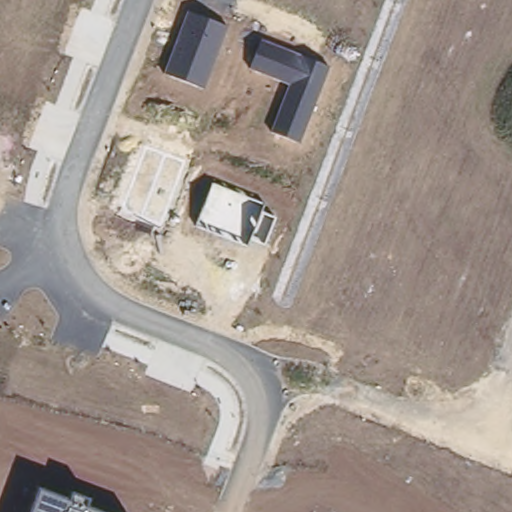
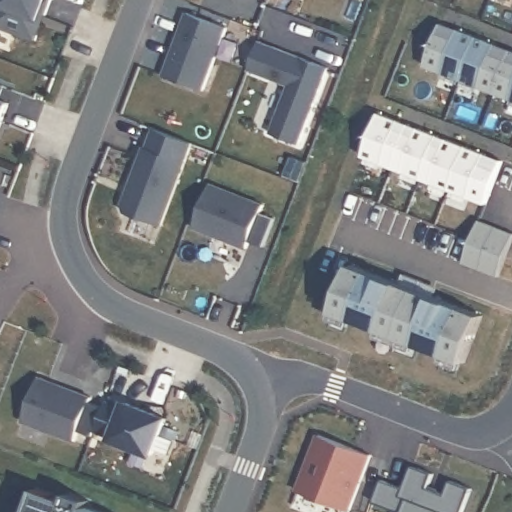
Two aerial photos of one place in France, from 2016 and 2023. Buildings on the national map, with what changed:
new [(0,26),(0,7),(3,0),(51,0),(36,39),(0,26)]
unchanged [(187,11),(229,26),(205,90),(164,73),(187,11)]
new [(512,52),(512,100),(427,67),(443,25),(512,52)]
unchanged [(290,85),(249,70),(261,39),(332,66),(301,144),(272,131),(290,85)]
new [(4,84),(0,95),(0,83),(4,84)]
new [(9,103),(0,126),(0,100),(9,103)]
new [(380,114),(506,165),(490,207),(364,157),(380,114)]
unchanged [(123,209),(147,146),(187,161),(166,225),(123,209)]
unchanged [(250,239),(247,247),(192,227),(210,182),(266,204),(263,213),(276,219),(266,245),(250,239)]
new [(512,250),(501,280),(460,264),(477,216),(512,231),(512,250)]
new [(351,263),(489,319),(469,371),(328,317),(351,263)]
new [(94,435),(80,430),(76,440),(24,420),(41,377),(92,397),(91,402),(105,407),(94,435)]
new [(107,402),(124,409),(127,403),(167,418),(153,455),(112,439),(114,436),(96,429),(107,402)]
new [(319,435),(371,455),(349,510),(297,490),(319,435)]
new [(385,482),(406,490),(415,468),(432,474),(427,490),(447,498),(452,484),(472,489),(464,512),(394,512),(376,504),(385,482)]
unchanged [(38,491),(70,500),(72,492),(91,499),(89,507),(99,512),(30,512),(38,491)]

